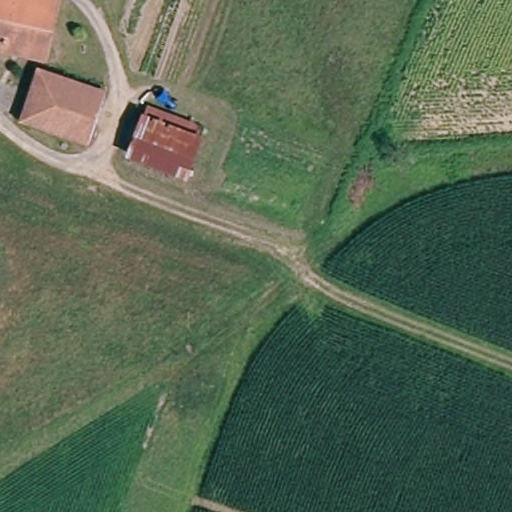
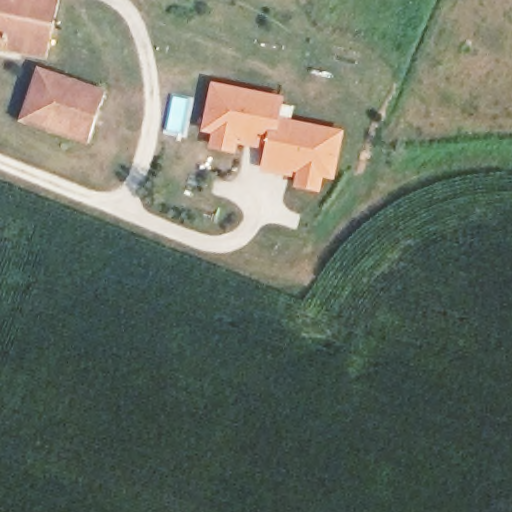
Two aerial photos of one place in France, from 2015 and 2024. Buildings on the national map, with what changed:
unchanged [(46,63),(0,51),(0,0),(24,0),(59,8),(46,63)]
unchanged [(89,143),(24,127),(35,75),(102,92),(89,143)]
new [(281,120),(346,131),(336,182),(323,179),(321,194),(294,190),(296,178),(262,173),(267,151),(239,145),(237,157),(211,151),(214,133),(202,131),(211,83),(285,98),(281,120)]

